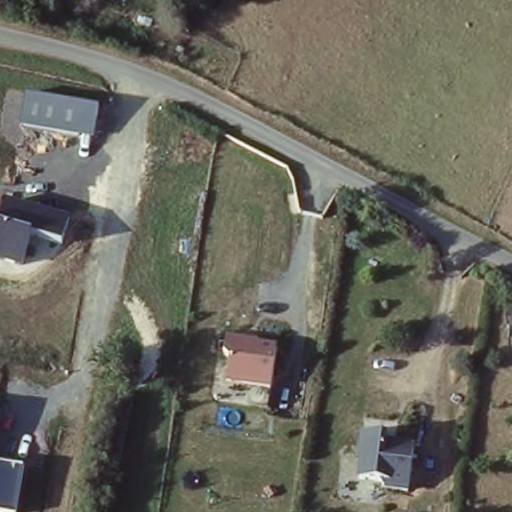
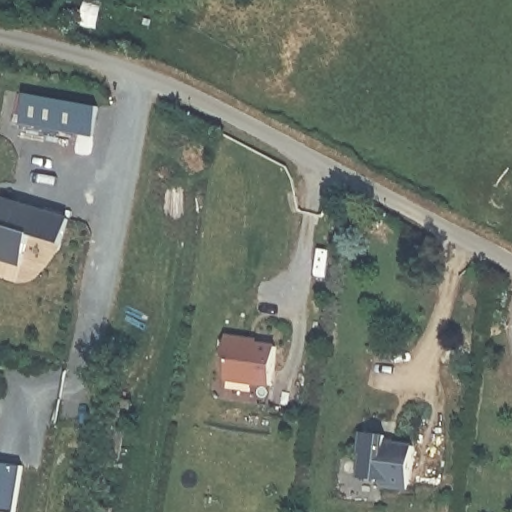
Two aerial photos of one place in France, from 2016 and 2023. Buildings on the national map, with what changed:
unchanged [(100,109),(94,141),(20,129),(26,96),(100,109)]
unchanged [(64,247),(32,240),(24,271),(0,263),(0,218),(5,202),(71,219),(64,247)]
unchanged [(272,344),(265,387),(227,379),(229,364),(222,362),(229,337),(272,344)]
unchanged [(135,396),(125,461),(99,457),(113,391),(135,396)]
unchanged [(382,440),(381,447),(390,448),(391,445),(410,448),(402,491),(378,487),(375,481),(355,478),(358,455),(355,455),(358,437),(382,440)]
unchanged [(24,470),(16,512),(0,512),(0,466),(24,470)]

